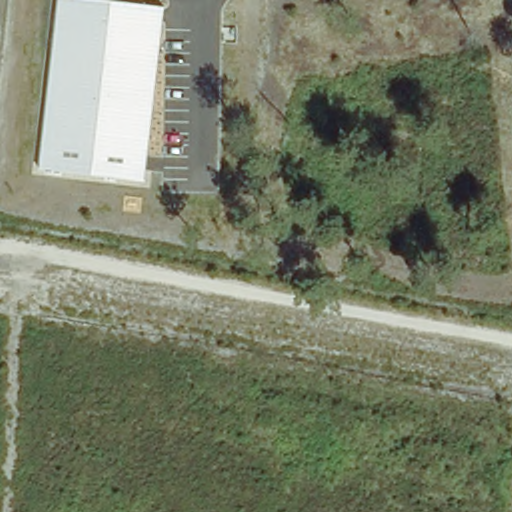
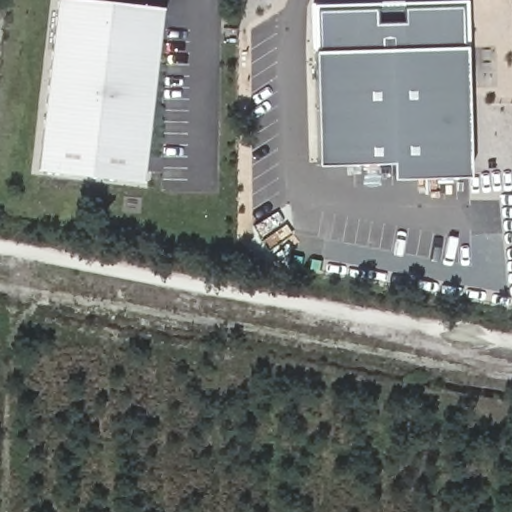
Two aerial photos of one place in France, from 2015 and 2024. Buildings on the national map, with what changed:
unchanged [(146,180),(41,168),(61,0),(114,0),(167,7),(146,180)]
new [(468,170),(392,174),(392,158),(322,160),(318,0),(465,0),(468,170)]

